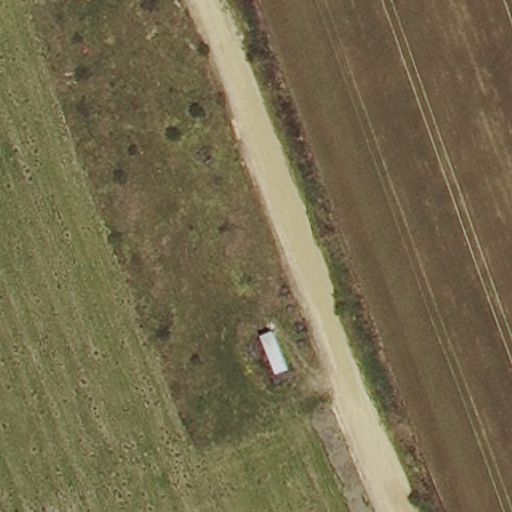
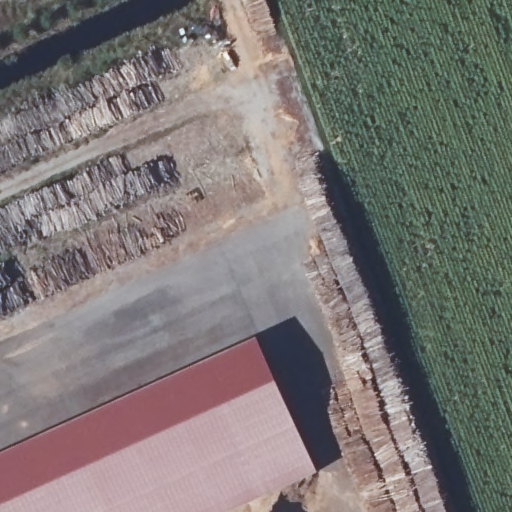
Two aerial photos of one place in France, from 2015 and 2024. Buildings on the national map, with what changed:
new [(295,415),(320,471),(231,512),(0,512),(0,454),(258,336),(295,415)]

